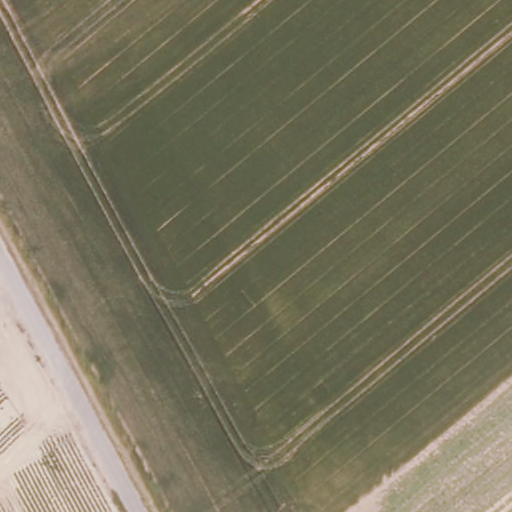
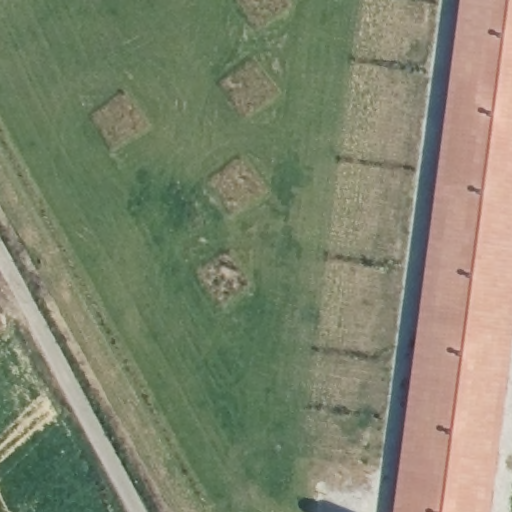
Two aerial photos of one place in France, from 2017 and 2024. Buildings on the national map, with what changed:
new [(466,0),(512,0),(512,312),(486,512),(397,512),(466,0)]

